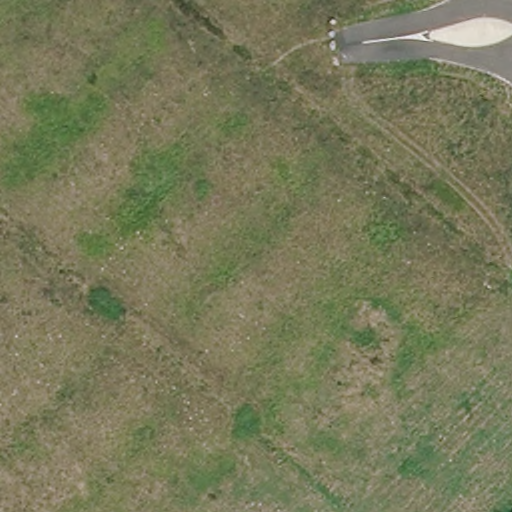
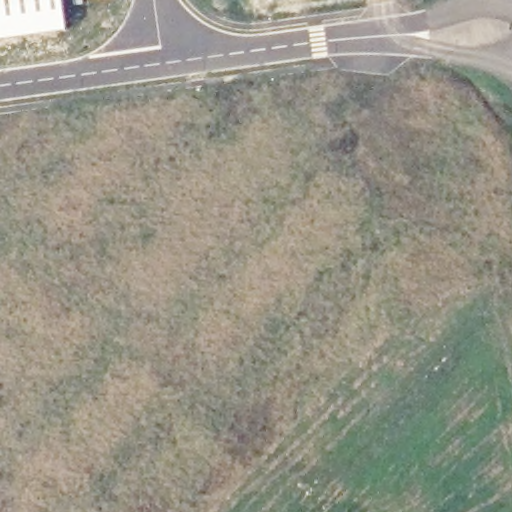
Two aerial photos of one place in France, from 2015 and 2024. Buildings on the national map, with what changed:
new [(0,39),(0,0),(62,0),(66,29),(0,39)]

